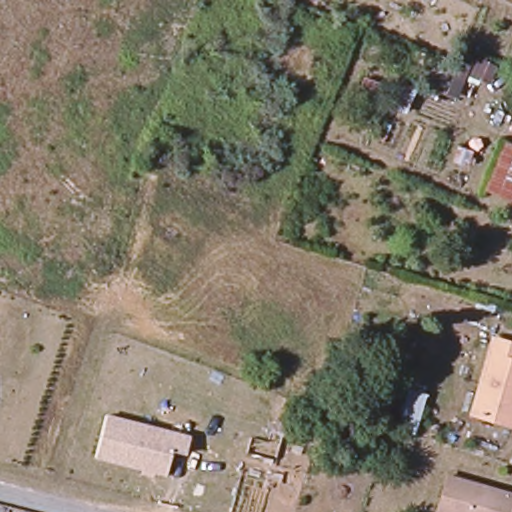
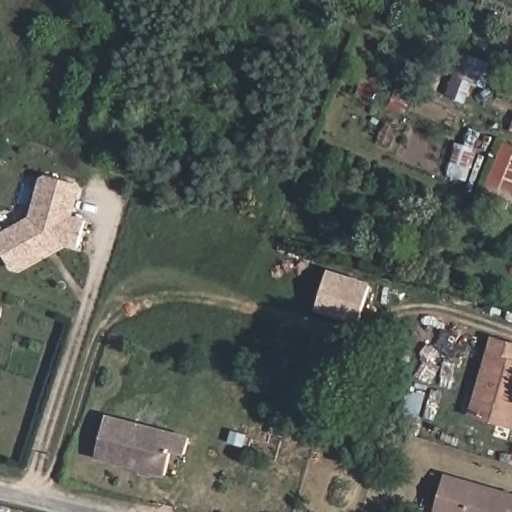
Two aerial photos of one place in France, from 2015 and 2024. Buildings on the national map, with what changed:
unchanged [(481,59),(465,107),(452,104),(466,52),(481,59)]
unchanged [(353,100),(360,81),(376,89),(371,107),(353,100)]
unchanged [(512,208),(481,195),(500,144),(512,149),(512,208)]
new [(81,184),(73,215),(86,219),(77,249),(63,245),(15,273),(0,246),(0,232),(29,216),(41,173),(81,184)]
new [(326,270),(372,284),(362,320),(316,305),(326,270)]
unchanged [(512,429),(468,415),(490,343),(512,350),(512,429)]
unchanged [(189,436),(185,455),(170,451),(164,475),(99,460),(108,415),(189,436)]
unchanged [(512,502),(512,512),(438,512),(445,485),(512,502)]

